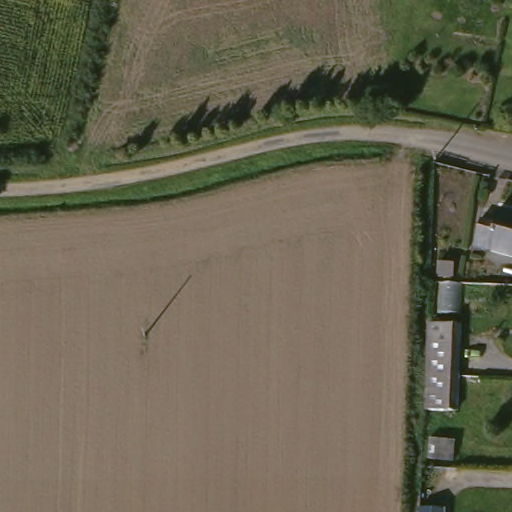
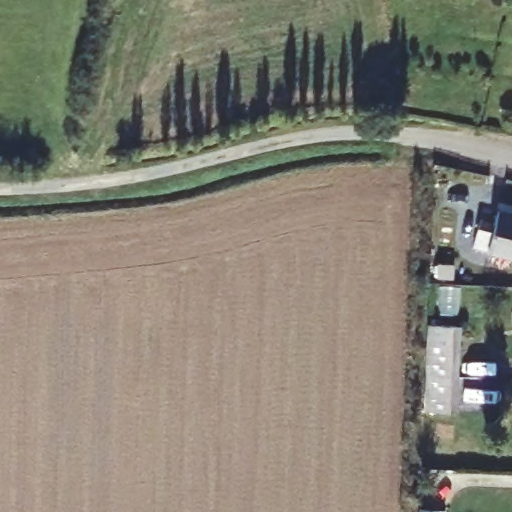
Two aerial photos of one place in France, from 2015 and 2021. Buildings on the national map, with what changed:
unchanged [(478,226),(491,229),(497,213),(512,217),(512,266),(469,254),(478,226)]
unchanged [(423,415),(425,382),(427,333),(457,335),(454,383),(451,418),(423,415)]
unchanged [(446,512),(417,512),(418,510),(446,510),(446,512)]

